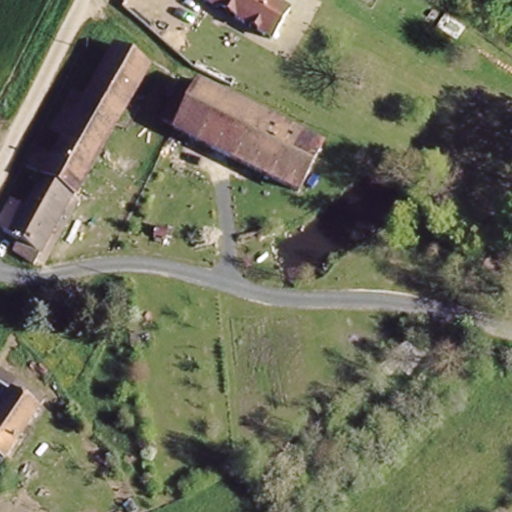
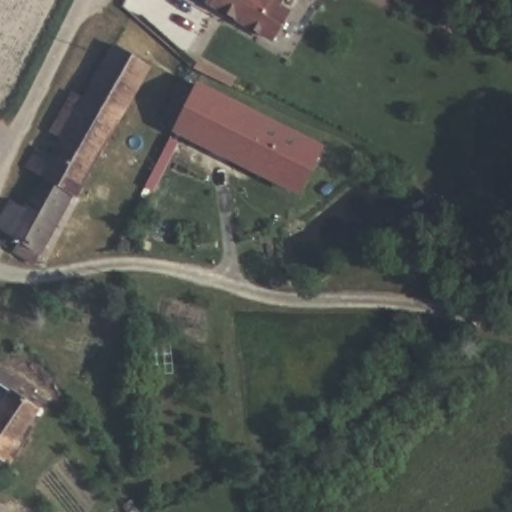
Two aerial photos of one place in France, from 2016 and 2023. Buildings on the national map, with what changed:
unchanged [(210,2),(206,0),(212,0),(210,2)]
unchanged [(286,18),(269,43),(210,2),(212,0),(258,0),(286,18)]
unchanged [(115,46),(150,65),(128,98),(97,78),(96,77),(115,46)]
unchanged [(27,209),(42,181),(34,176),(37,170),(28,165),(38,148),(52,156),(65,134),(52,127),(74,87),(87,94),(96,77),(97,78),(128,98),(73,197),(69,195),(33,258),(30,256),(0,243),(0,213),(8,198),(27,209)]
unchanged [(322,206),(180,133),(167,127),(188,81),(202,88),(345,161),(322,206)]
unchanged [(52,285),(58,272),(73,279),(67,292),(63,290),(52,285)]
unchanged [(35,405),(0,455),(0,392),(2,387),(35,405)]

